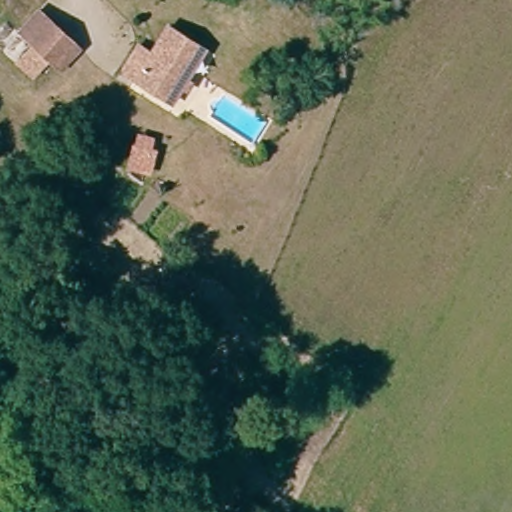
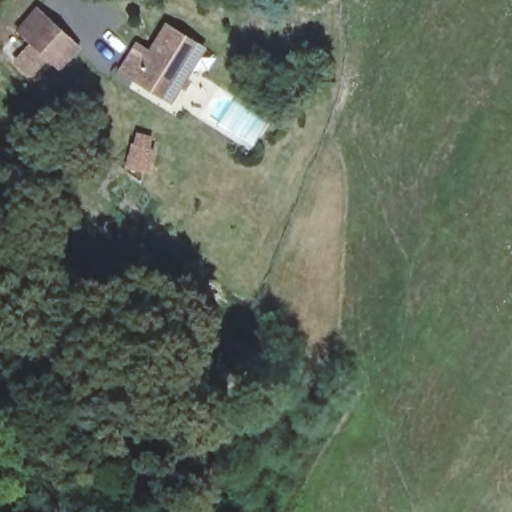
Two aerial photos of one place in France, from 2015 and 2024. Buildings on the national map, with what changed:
unchanged [(34,25),(41,31),(53,18),(83,47),(61,70),(53,62),(49,66),(42,73),(26,58),(23,55),(33,44),(24,35),(34,25)]
unchanged [(147,48),(158,54),(174,29),(205,48),(176,96),(150,80),(146,87),(129,76),(147,48)]
unchanged [(148,146),(162,153),(154,172),(140,165),(148,146)]

